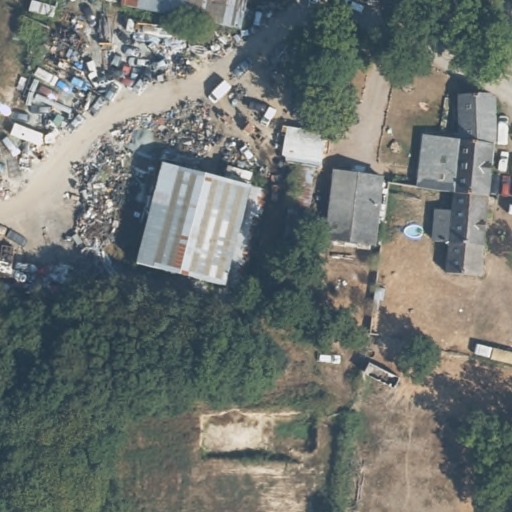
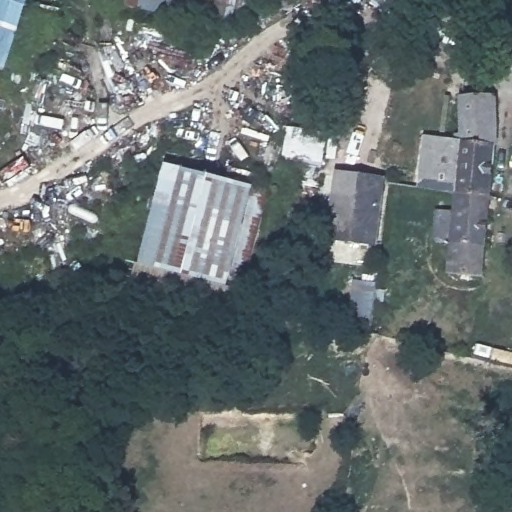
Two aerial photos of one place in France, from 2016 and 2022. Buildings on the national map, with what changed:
new [(4,69),(0,67),(0,0),(28,0),(4,69)]
unchanged [(241,32),(118,7),(121,0),(248,0),(241,32)]
unchanged [(468,122),(466,92),(497,90),(500,123),(492,190),(460,186),(468,122)]
unchanged [(327,133),(321,173),(314,173),(309,219),(295,218),(300,174),(292,173),(283,160),(289,127),(327,133)]
unchanged [(163,163),(252,186),(227,286),(139,265),(163,163)]
unchanged [(383,177),(377,254),(326,249),(333,172),(383,177)]
unchanged [(492,190),(483,269),(449,266),(460,186),(492,190)]

